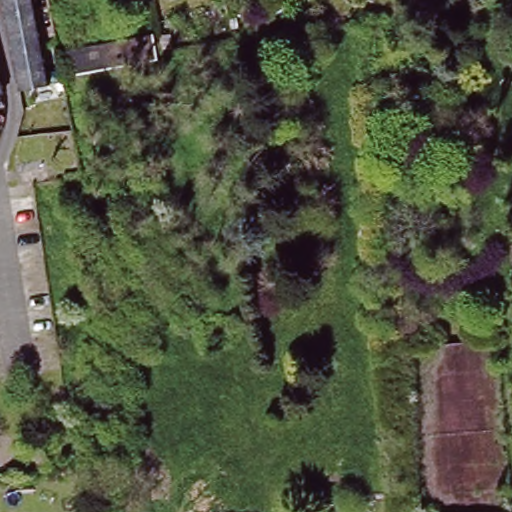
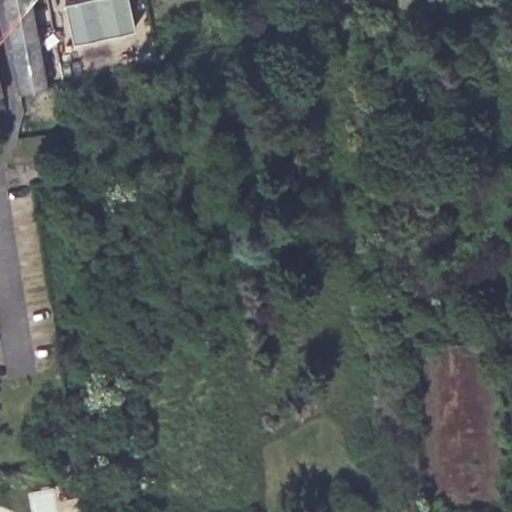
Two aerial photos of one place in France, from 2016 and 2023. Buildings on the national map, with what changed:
unchanged [(34,7),(42,47),(40,47),(47,86),(19,92),(10,52),(12,52),(4,11),(2,12),(0,0),(30,0),(32,7),(34,7)]
new [(81,0),(131,0),(136,24),(72,35),(65,4),(81,0)]
unchanged [(61,49),(157,30),(160,60),(65,77),(61,49)]
unchanged [(3,92),(0,93),(0,82),(3,92)]

